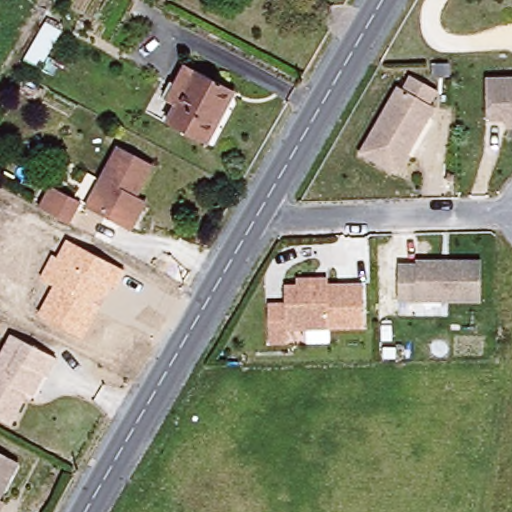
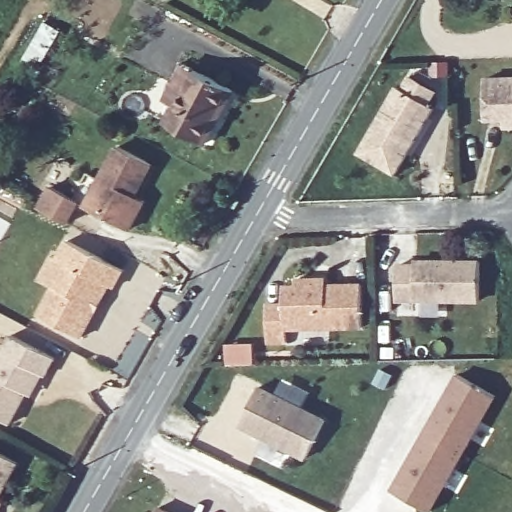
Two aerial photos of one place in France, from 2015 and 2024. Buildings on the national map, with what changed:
unchanged [(205,148),(167,126),(175,110),(164,103),(185,65),(196,71),(236,94),(205,148)]
unchanged [(402,172),(364,151),(401,84),(408,88),(415,74),(441,88),(433,101),(439,105),(402,172)]
unchanged [(487,121),(486,81),(512,80),(512,129),(506,129),(506,121),(487,121)]
unchanged [(138,208),(126,230),(83,204),(117,145),(148,164),(130,195),(141,202),(138,208)]
unchanged [(34,208),(49,183),(77,199),(63,223),(34,208)]
unchanged [(53,287),(39,279),(52,255),(58,259),(67,241),(125,271),(115,290),(111,288),(85,339),(39,315),(53,287)]
unchanged [(482,298),(401,300),(399,265),(417,265),(417,261),(481,259),(482,298)]
unchanged [(365,330),(288,332),(289,345),(271,346),(269,309),(286,308),(286,290),(298,290),(298,284),(313,283),(328,283),(328,289),(363,288),(365,330)]
unchanged [(29,390),(13,422),(0,415),(0,356),(12,333),(56,355),(47,374),(44,372),(33,392),(29,390)]
new [(457,375),(494,396),(430,512),(393,491),(457,375)]
new [(261,389),(328,422),(310,461),(243,428),(261,389)]
unchanged [(15,465),(0,493),(0,457),(15,465)]
new [(160,509),(167,512),(158,512),(160,509)]

